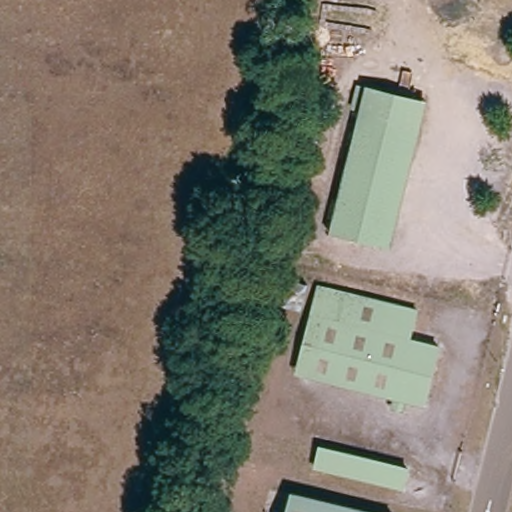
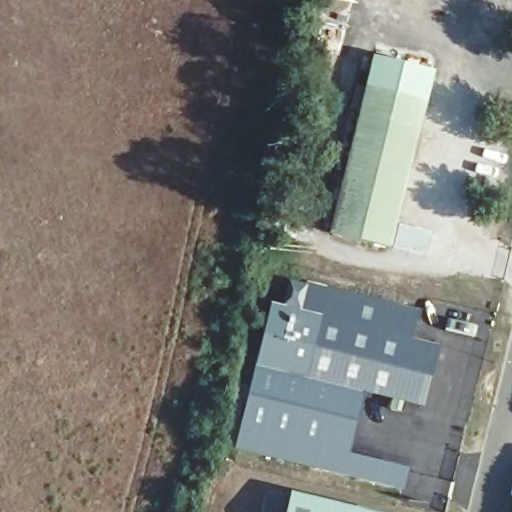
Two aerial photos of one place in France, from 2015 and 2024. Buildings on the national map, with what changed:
new [(365,94),(375,57),(432,70),(422,108),(365,94)]
unchanged [(416,137),(357,123),(365,94),(422,108),(416,137)]
unchanged [(387,255),(328,241),(357,123),(416,137),(387,255)]
unchanged [(297,307),(280,303),(286,277),(303,281),(297,307)]
new [(348,452),(328,447),(323,466),(234,449),(271,304),(280,303),(297,307),(302,282),(420,311),(412,339),(433,344),(432,354),(402,346),(409,318),(320,296),(299,383),(361,398),(348,452)]
unchanged [(409,318),(402,346),(432,354),(418,412),(299,383),(320,296),(409,318)]
unchanged [(417,468),(412,488),(323,466),(328,447),(417,468)]
unchanged [(356,512),(286,512),(290,496),(356,512)]

